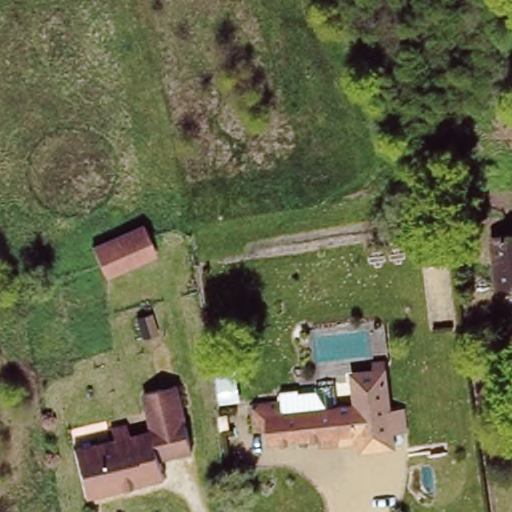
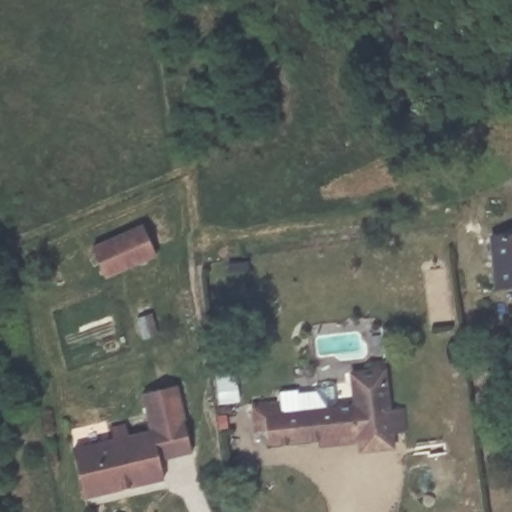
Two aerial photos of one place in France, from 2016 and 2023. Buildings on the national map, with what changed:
unchanged [(156,255),(104,277),(89,246),(141,226),(156,255)]
unchanged [(495,237),(512,236),(512,284),(497,285),(495,237)]
unchanged [(386,360),(392,409),(404,408),(406,432),(395,434),(396,453),(357,455),(356,441),(250,446),(250,403),(277,405),(277,391),(315,388),(325,405),(350,401),(348,372),(386,360)]
unchanged [(234,370),(237,401),(219,403),(215,371),(234,370)]
unchanged [(195,455),(165,462),(170,479),(87,500),(75,453),(106,445),(102,431),(124,426),(128,443),(159,435),(150,396),(179,388),(195,455)]

